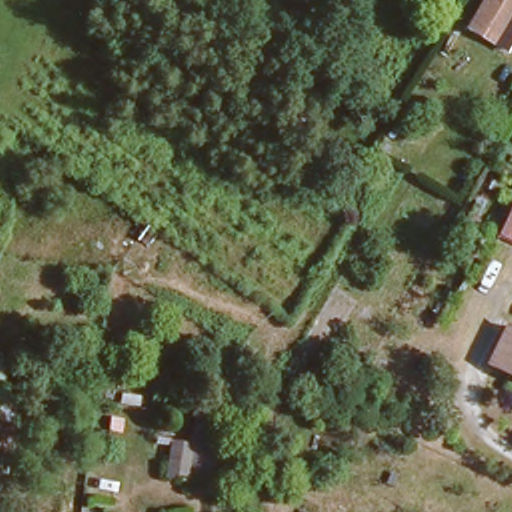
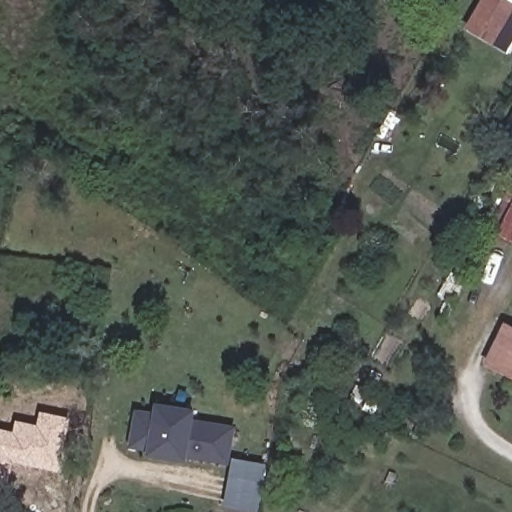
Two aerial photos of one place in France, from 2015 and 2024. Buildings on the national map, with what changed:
unchanged [(474,11),(480,0),(512,0),(512,36),(507,46),(494,37),(467,23),(474,11)]
unchanged [(503,180),(512,184),(512,238),(481,226),(503,180)]
unchanged [(512,326),(512,374),(496,368),(512,326)]
new [(265,466),(262,512),(226,512),(232,480),(148,463),(155,407),(232,420),(227,462),(265,466)]
new [(40,412),(69,418),(59,472),(12,461),(7,487),(0,485),(0,429),(13,432),(15,420),(37,425),(40,412)]
demolished [(3,415),(0,435),(0,415),(3,415)]
demolished [(202,433),(223,435),(221,477),(200,475),(202,433)]

